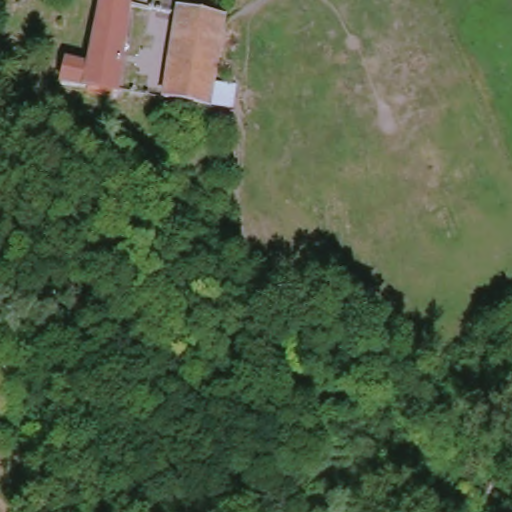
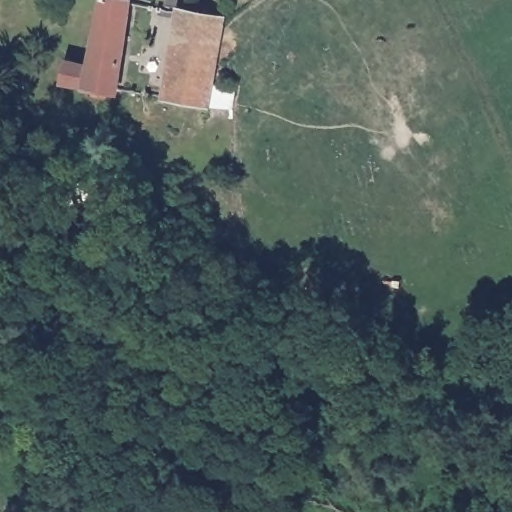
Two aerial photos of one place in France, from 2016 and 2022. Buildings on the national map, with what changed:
unchanged [(89,67),(105,0),(114,0),(135,5),(117,95),(66,85),(70,64),(89,67)]
unchanged [(212,107),(165,96),(185,7),(230,17),(212,107)]

